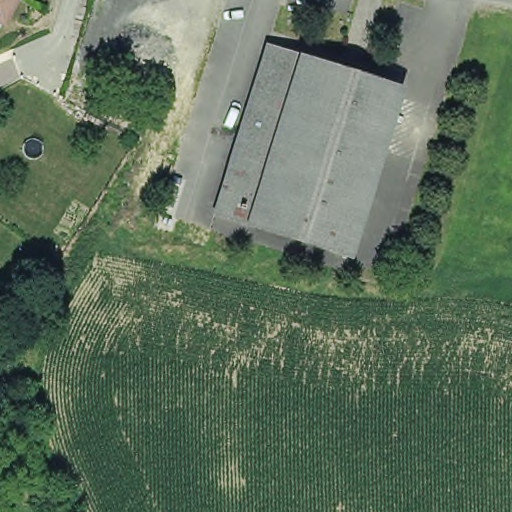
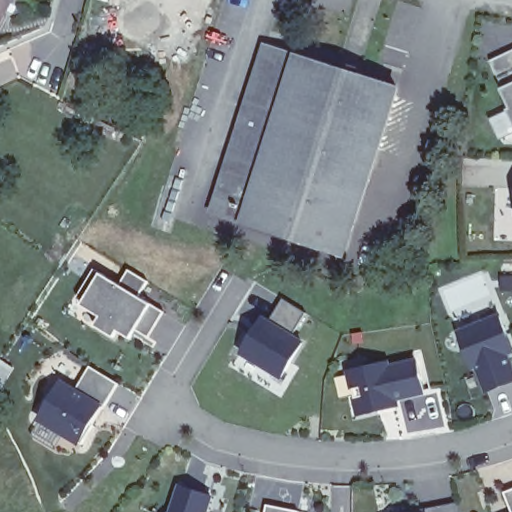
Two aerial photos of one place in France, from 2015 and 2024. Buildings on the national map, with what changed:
unchanged [(0,27),(0,0),(15,0),(0,27)]
new [(512,108),(502,88),(504,87),(491,61),(512,51),(512,118),(508,110),(512,108)]
unchanged [(323,68),(312,111),(261,96),(276,53),(323,68)]
unchanged [(323,68),(404,94),(351,260),(222,220),(261,96),(312,111),(323,68)]
new [(148,337),(136,330),(131,338),(118,331),(114,338),(93,325),(99,316),(81,304),(83,301),(75,295),(92,269),(100,274),(121,286),(128,270),(148,281),(141,297),(151,303),(164,311),(148,337)]
new [(281,380),(238,354),(263,315),(271,320),(284,299),(308,313),(294,335),(304,341),(281,380)]
new [(512,341),(512,352),(509,353),(512,363),(512,384),(484,395),(474,373),(467,374),(451,327),(499,308),(512,341)]
new [(421,350),(427,395),(401,401),(401,414),(351,421),(341,365),(421,350)]
new [(79,448),(36,421),(61,379),(76,388),(90,366),(119,383),(79,448)]
new [(214,495),(209,512),(168,512),(178,483),(214,495)]
new [(512,489),(512,512),(504,492),(512,489)]
new [(410,512),(455,502),(455,503),(457,512),(410,512)]
new [(299,511),(298,512),(265,512),(266,505),(299,511)]

